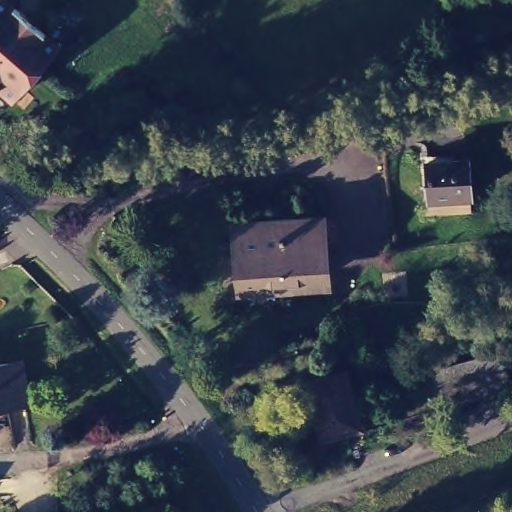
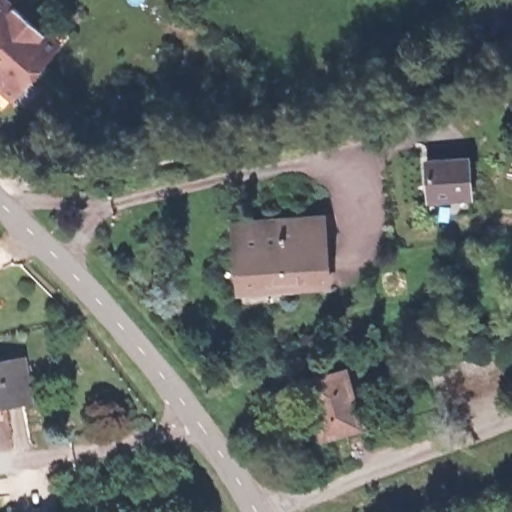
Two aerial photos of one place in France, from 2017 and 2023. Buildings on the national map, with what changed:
unchanged [(10,105),(0,94),(0,88),(1,85),(0,84),(0,0),(12,0),(60,46),(10,105)]
unchanged [(433,194),(431,158),(436,156),(473,155),(472,194),(449,194),(433,194)]
unchanged [(243,284),(243,273),(239,240),(243,237),(243,215),(324,215),(328,269),(329,280),(243,284)]
unchanged [(31,392),(0,397),(0,355),(24,351),(31,392)]
unchanged [(506,353),(512,381),(444,398),(438,367),(506,353)]
unchanged [(361,377),(369,417),(313,429),(305,388),(361,377)]

